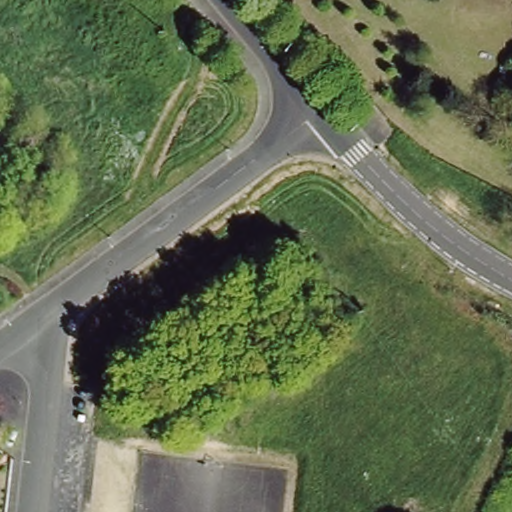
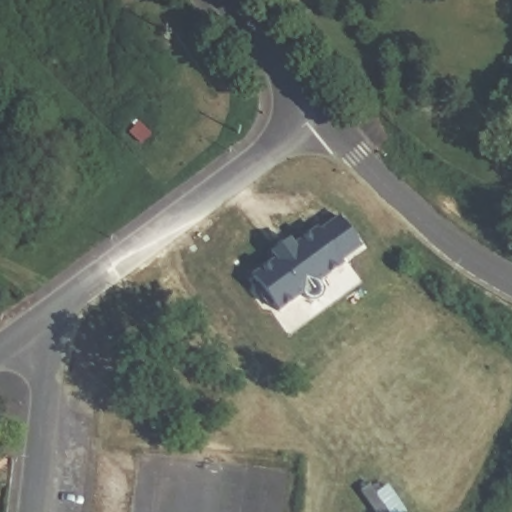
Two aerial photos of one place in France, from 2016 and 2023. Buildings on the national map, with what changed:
new [(317,229),(318,232),(339,217),(360,247),(340,262),(342,265),(278,311),(252,276),(317,229)]

